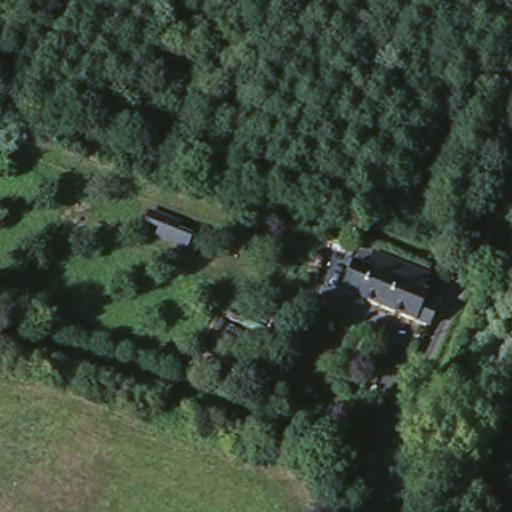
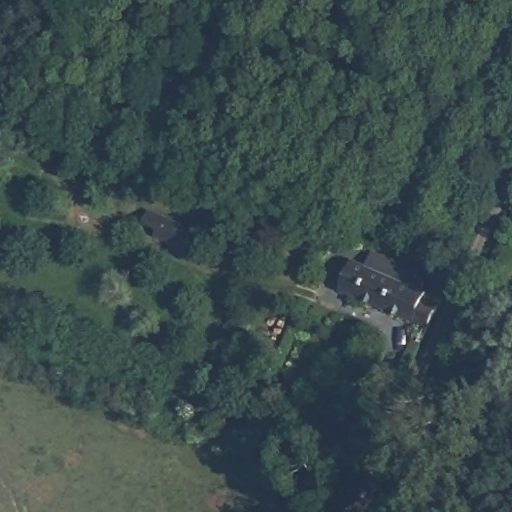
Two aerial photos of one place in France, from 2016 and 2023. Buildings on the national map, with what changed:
unchanged [(429,316),(426,324),(346,293),(357,264),(365,266),(370,252),(431,275),(426,288),(433,292),(429,301),(441,306),(433,318),(429,316)]

